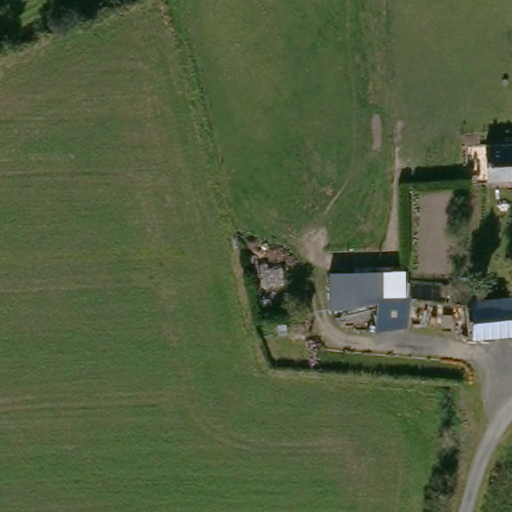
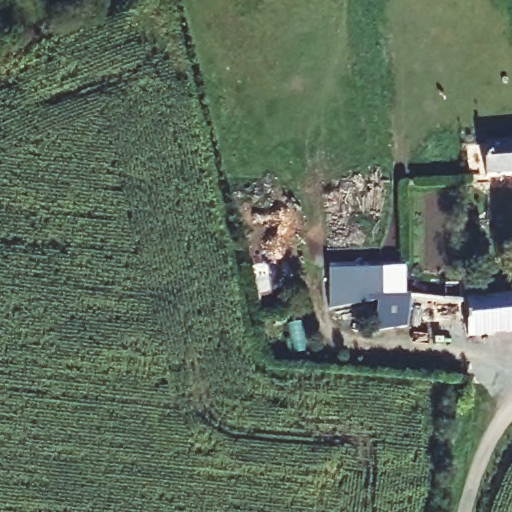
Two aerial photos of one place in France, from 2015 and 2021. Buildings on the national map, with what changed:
unchanged [(489,140),(512,139),(512,176),(491,177),(489,140)]
unchanged [(410,267),(407,305),(329,310),(328,271),(410,267)]
unchanged [(466,302),(480,300),(512,295),(512,331),(472,336),(466,302)]

